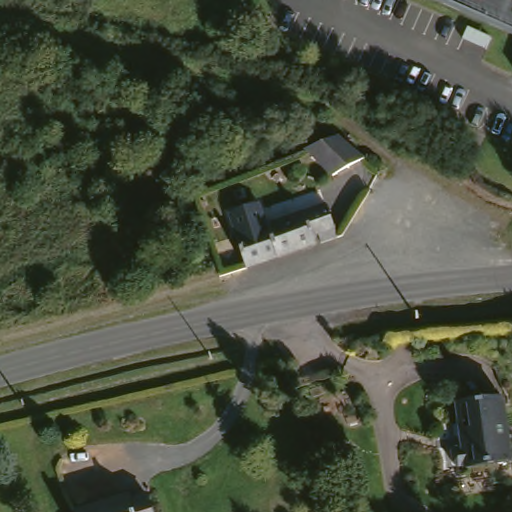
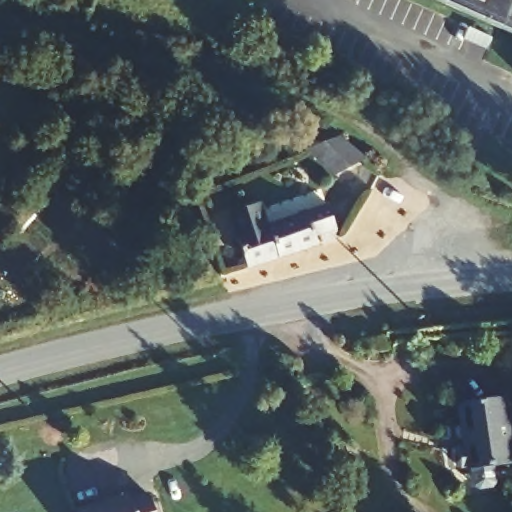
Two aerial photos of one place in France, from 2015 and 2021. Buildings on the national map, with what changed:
unchanged [(428,0),(512,0),(512,39),(428,0)]
unchanged [(346,142),(366,160),(333,174),(313,155),(346,142)]
unchanged [(339,210),(346,235),(320,241),(321,247),(248,265),(239,231),(339,210)]
unchanged [(510,395),(512,410),(512,462),(473,468),(472,467),(465,468),(460,465),(458,455),(462,448),(470,447),(462,402),(510,395)]
unchanged [(158,512),(83,512),(136,496),(137,501),(154,496),(158,512)]

